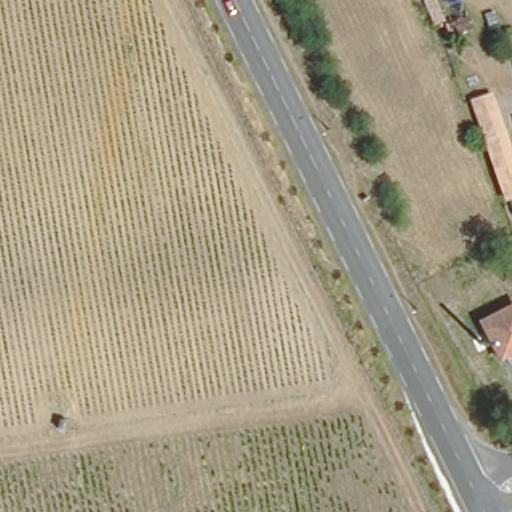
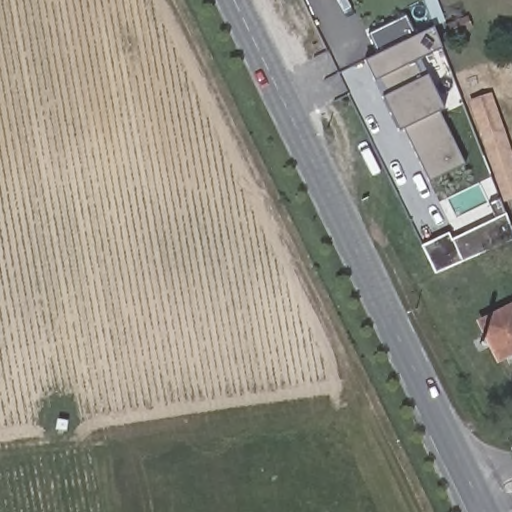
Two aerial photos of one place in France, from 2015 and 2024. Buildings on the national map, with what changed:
new [(365,60),(433,27),(442,47),(417,59),(423,77),(428,74),(444,108),(440,111),(465,164),(427,181),(404,128),(401,130),(383,96),(389,93),(380,76),(375,80),(365,60)]
unchanged [(512,206),(504,187),(501,189),(480,132),(465,95),(484,89),(498,126),(512,163),(512,205),(512,206)]
new [(435,274),(420,245),(447,232),(451,239),(505,214),(512,231),(512,240),(435,274)]
unchanged [(512,304),(512,349),(500,353),(484,316),(512,304)]

